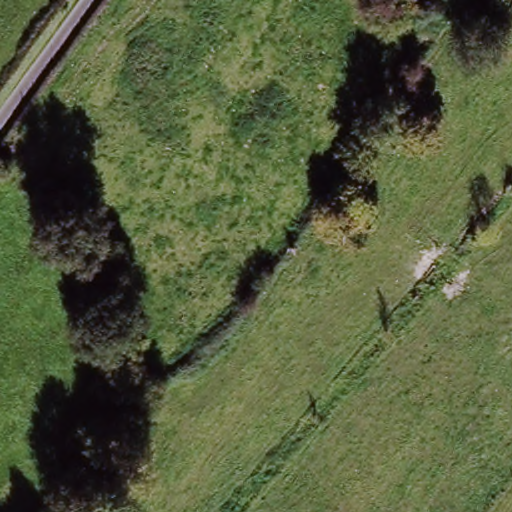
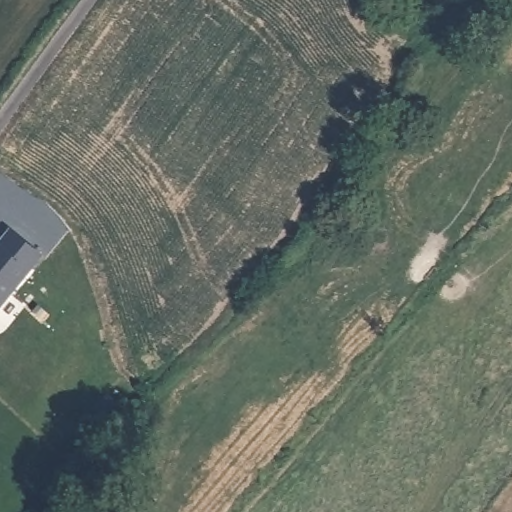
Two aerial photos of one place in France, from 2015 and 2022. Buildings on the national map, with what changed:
new [(47,251),(0,310),(0,240),(2,241),(15,225),(47,251)]

